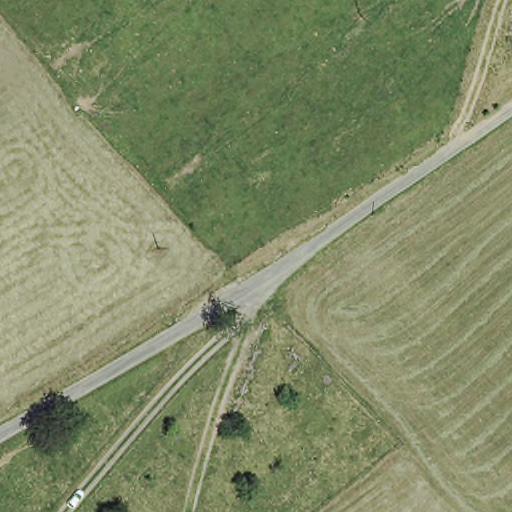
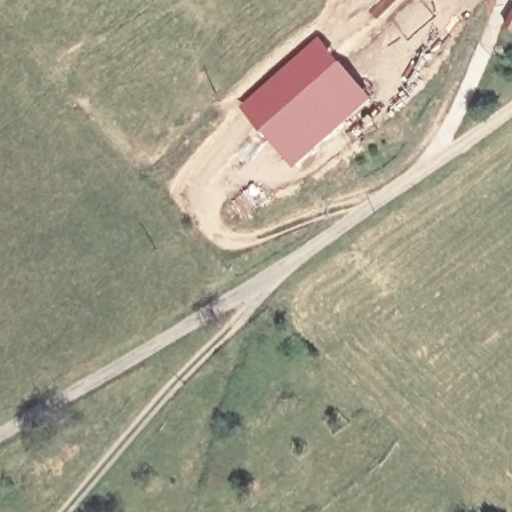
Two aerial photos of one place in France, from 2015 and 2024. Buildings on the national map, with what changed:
new [(317,37),(375,100),(297,169),(238,107),(317,37)]

